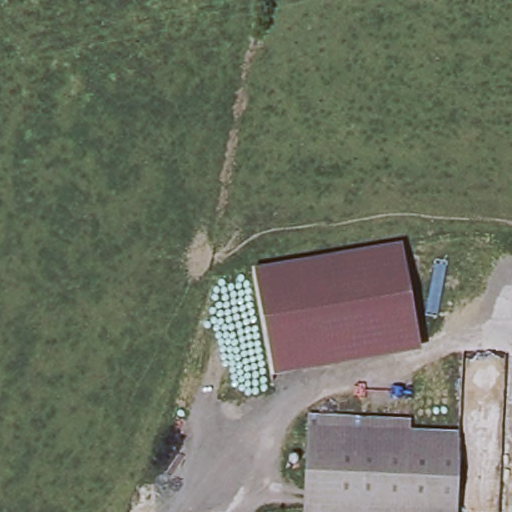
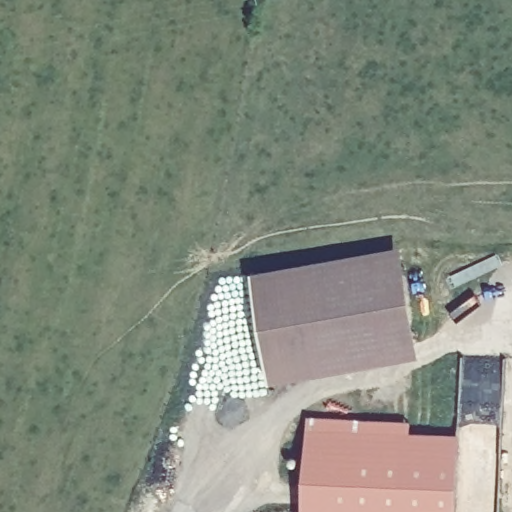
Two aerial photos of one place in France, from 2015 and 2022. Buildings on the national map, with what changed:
unchanged [(269,387),(248,273),(399,241),(417,353),(294,384),(269,387)]
unchanged [(309,512),(313,430),(462,438),(459,512),(309,512)]

